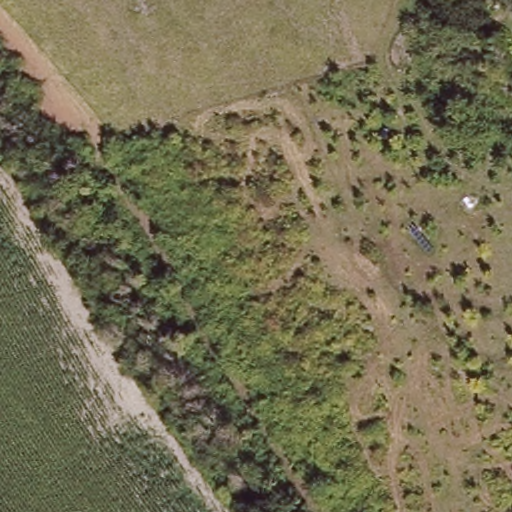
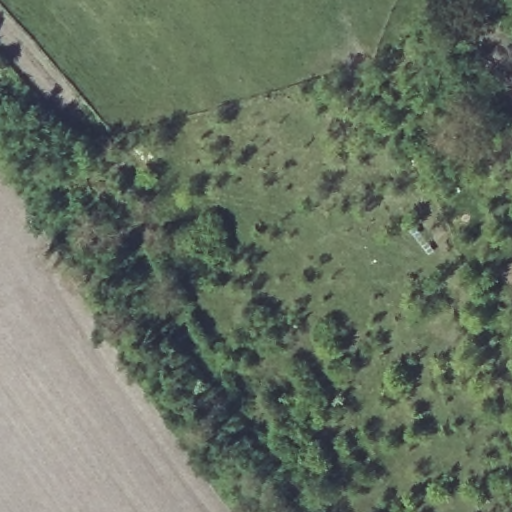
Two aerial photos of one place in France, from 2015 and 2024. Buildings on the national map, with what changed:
[]

